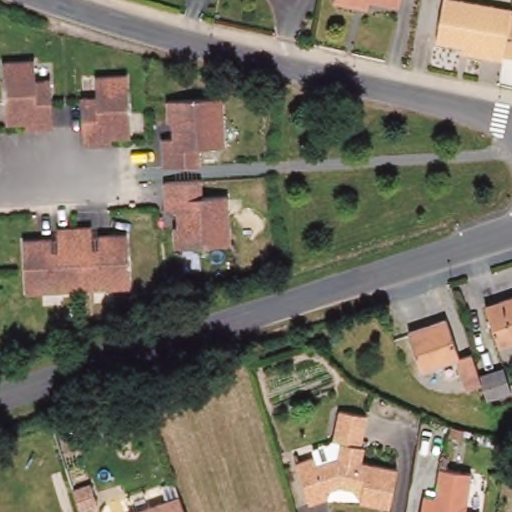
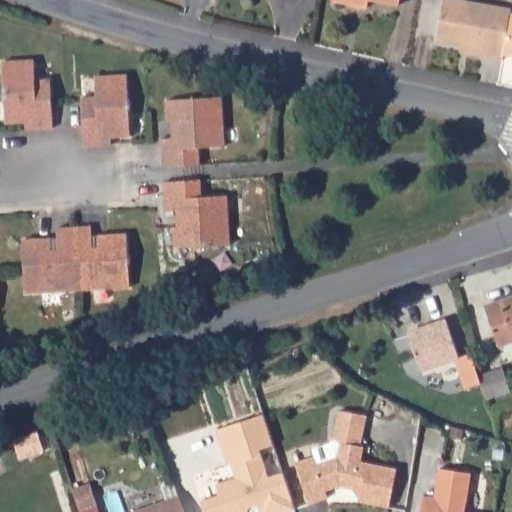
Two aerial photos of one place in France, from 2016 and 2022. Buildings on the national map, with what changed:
unchanged [(396,6),(366,0),(365,9),(351,6),(352,0),(397,0),(396,6)]
unchanged [(500,55),(499,59),(480,56),(481,48),(456,43),(455,46),(432,42),(439,0),(458,0),(507,8),(506,14),(500,55)]
unchanged [(512,15),(512,58),(500,55),(506,14),(512,15)]
unchanged [(27,122),(6,123),(3,61),(35,60),(36,80),(52,79),(55,129),(38,129),(28,130),(27,122)]
unchanged [(101,146),(83,147),(80,98),(94,97),(93,77),(125,75),(128,137),(110,138),(110,146),(101,146)]
unchanged [(227,153),(202,154),(203,170),(166,171),(165,143),(176,143),(175,126),(170,126),(169,106),(225,103),(227,153)]
unchanged [(233,248),(178,251),(177,230),(181,230),(180,210),(169,211),(167,182),(204,181),(205,198),(230,197),(233,248)]
unchanged [(26,297),(23,242),(51,240),(51,251),(59,251),(58,229),(73,228),(90,227),(91,249),(99,249),(98,238),(127,236),(130,291),(93,293),(62,295),(26,297)]
unchanged [(498,345),(485,306),(512,297),(512,341),(498,345)]
unchanged [(508,391),(484,399),(480,386),(466,390),(456,359),(420,370),(406,334),(450,320),(461,357),(471,354),(477,376),(500,368),(508,391)]
unchanged [(329,497),(310,503),(296,462),(315,456),(313,449),(331,443),(334,440),(341,410),(368,415),(361,445),(365,446),(362,461),(398,469),(390,507),(360,501),(363,490),(340,486),(326,490),(329,497)]
new [(261,447),(270,475),(283,472),(295,509),(287,512),(260,512),(257,502),(251,504),(248,512),(205,512),(201,500),(220,493),(216,483),(236,476),(233,464),(229,465),(218,429),(264,414),(274,442),(261,447)]
unchanged [(435,497),(439,467),(471,472),(464,512),(420,512),(423,495),(435,497)]
unchanged [(135,512),(180,496),(185,512),(135,512)]

